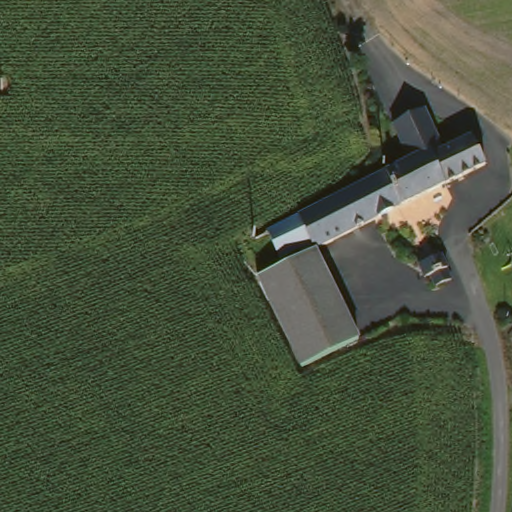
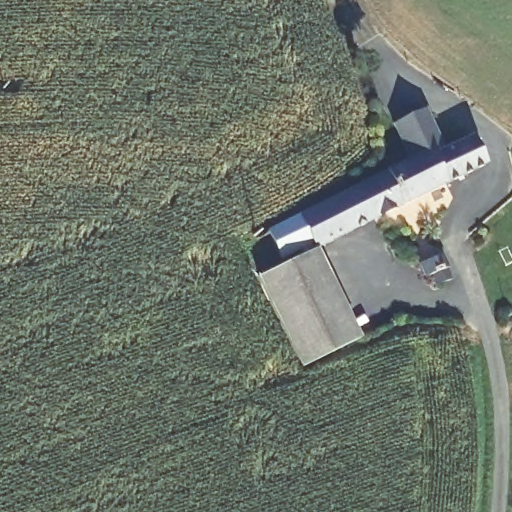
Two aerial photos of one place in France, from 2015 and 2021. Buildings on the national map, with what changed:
unchanged [(388,173),(411,162),(396,124),(424,109),(443,151),(472,136),(486,168),(404,209),(388,173)]
unchanged [(404,209),(319,251),(361,343),(303,371),(259,280),(287,267),(268,232),(388,173),(404,209)]

